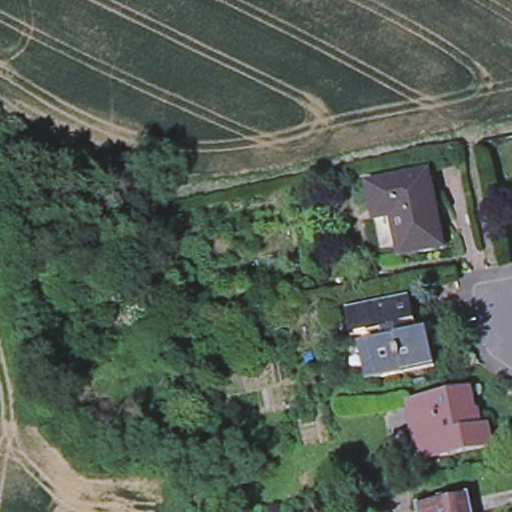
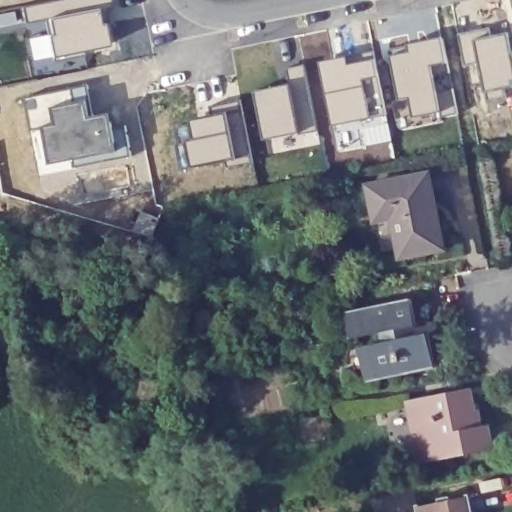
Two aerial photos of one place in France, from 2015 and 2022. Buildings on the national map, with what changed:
new [(69,0),(110,0),(110,6),(99,8),(103,27),(108,26),(111,47),(54,58),(52,35),(56,35),(53,20),(26,23),(23,7),(69,0)]
new [(489,38),(506,35),(508,54),(512,53),(512,81),(510,81),(512,86),(483,92),(477,64),(462,67),(458,35),(488,29),(489,38)]
new [(439,40),(444,62),(429,66),(437,112),(412,117),(408,98),(397,99),(389,57),(408,53),(407,43),(439,40)]
new [(344,58),(344,65),(371,60),(374,78),(359,80),(367,117),(331,126),(318,62),(344,58)]
new [(287,85),(286,70),(303,68),(316,131),(261,143),(254,92),(287,85)]
new [(86,90),(92,119),(108,116),(108,131),(124,130),(128,156),(74,166),(73,158),(46,165),(40,129),(29,131),(24,100),(86,90)]
new [(223,116),(231,158),(191,166),(186,142),(193,141),(191,122),(223,116)]
unchanged [(438,246),(394,255),(386,216),(369,220),(363,184),(423,172),(438,246)]
unchanged [(369,376),(363,343),(377,340),(374,328),(346,334),(342,310),(405,298),(412,333),(423,331),(429,365),(369,376)]
unchanged [(411,437),(403,397),(466,384),(474,422),(482,421),(485,439),(430,450),(414,454),(411,437)]
unchanged [(464,490),(468,512),(414,512),(412,501),(464,490)]

